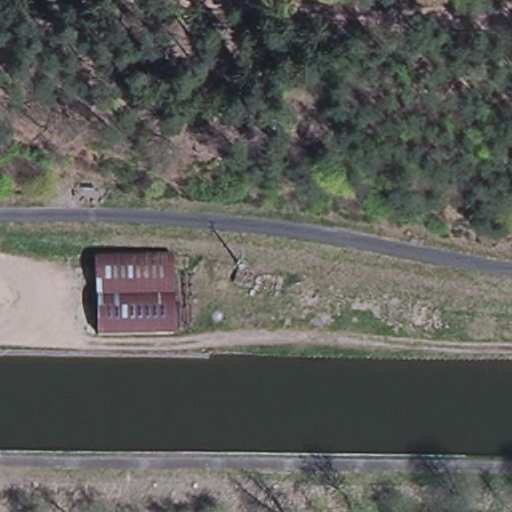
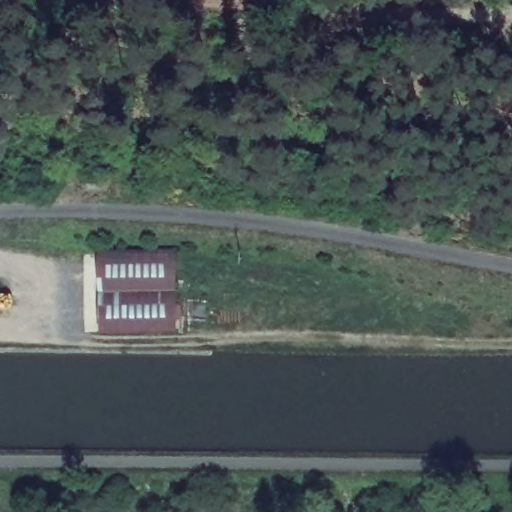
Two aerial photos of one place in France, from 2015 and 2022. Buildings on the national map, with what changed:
unchanged [(175,249),(177,332),(101,333),(100,250),(175,249)]

